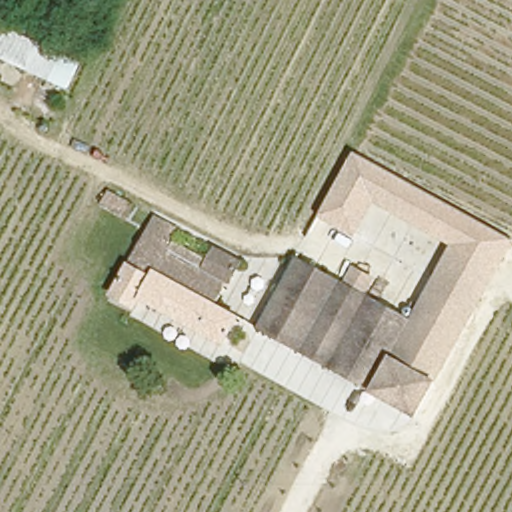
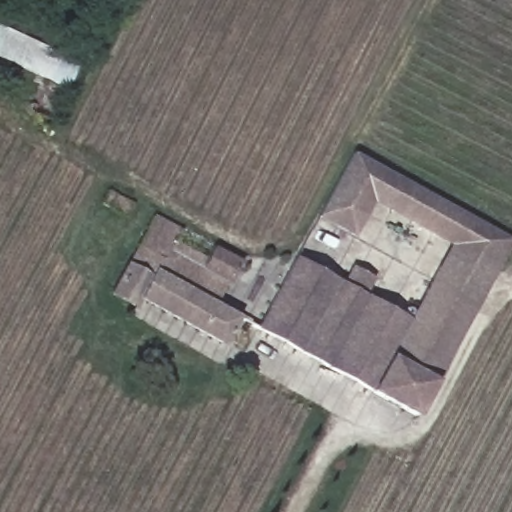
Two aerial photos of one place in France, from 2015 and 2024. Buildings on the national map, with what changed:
unchanged [(69,94),(23,72),(0,62),(0,23),(80,61),(69,94)]
unchanged [(450,245),(373,203),(355,235),(319,215),(354,152),(512,239),(512,243),(480,305),(432,280),(450,245)]
unchanged [(94,200),(104,182),(136,200),(125,218),(94,200)]
unchanged [(241,321),(222,352),(138,302),(132,313),(111,300),(156,224),(182,238),(176,250),(207,268),(215,255),(239,268),(216,307),(241,321)]
unchanged [(258,330),(299,260),(325,273),(343,283),(369,296),(412,318),(373,389),(305,355),(258,330)]
unchanged [(412,318),(432,280),(480,305),(418,415),(373,389),(412,318)]

